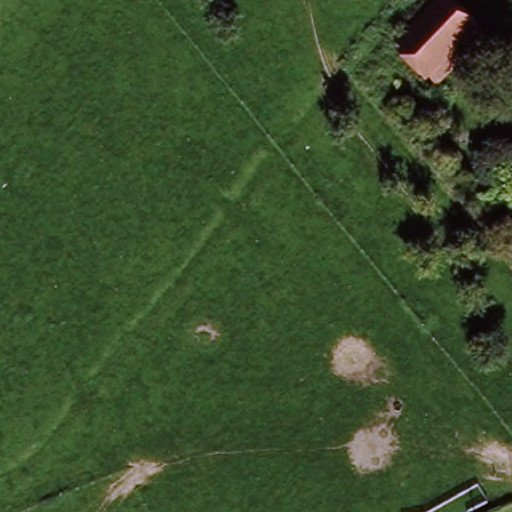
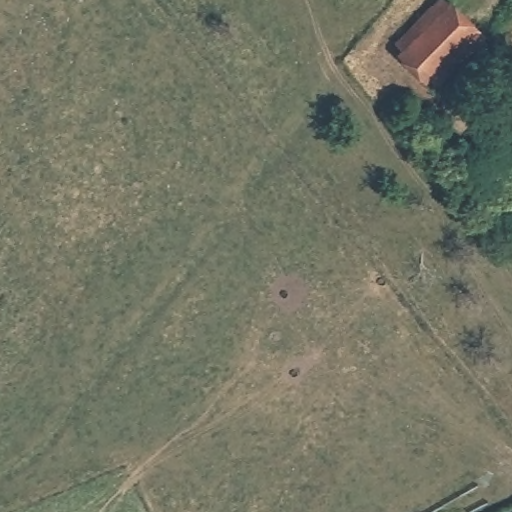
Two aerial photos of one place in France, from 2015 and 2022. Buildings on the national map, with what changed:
unchanged [(401,49),(448,4),(479,37),(431,81),(401,49)]

